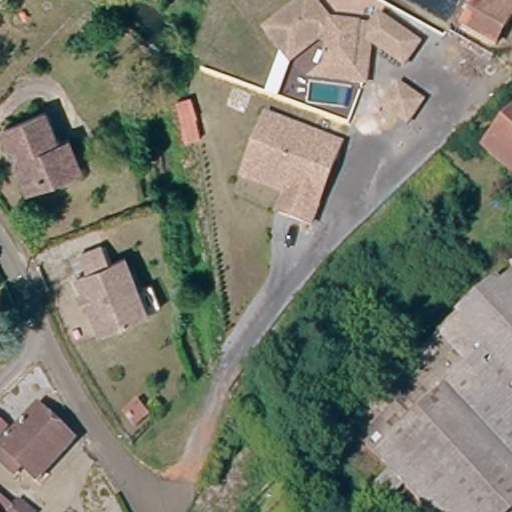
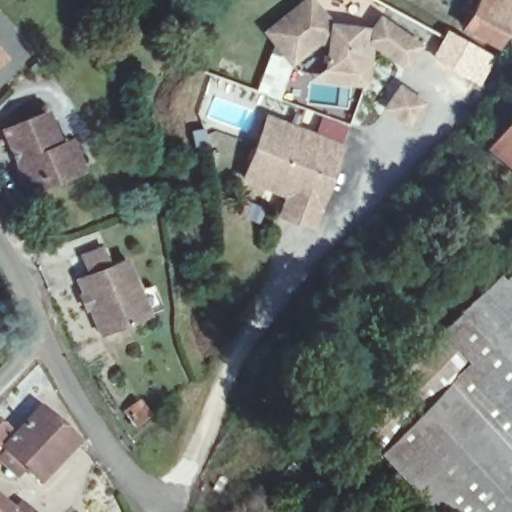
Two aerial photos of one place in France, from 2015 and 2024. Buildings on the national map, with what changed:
unchanged [(481,0),(512,0),(512,21),(499,44),(467,26),(481,0)]
unchanged [(315,60),(329,62),(331,46),(320,44),(293,65),(269,34),(313,1),(334,29),(374,34),(383,22),(422,49),(407,70),(373,46),(368,88),(353,86),(313,81),(315,60)]
new [(497,56),(481,85),(431,56),(447,28),(466,39),(497,56)]
new [(0,61),(0,49),(6,56),(0,61)]
unchanged [(403,90),(424,107),(410,127),(388,111),(403,90)]
unchanged [(30,186),(5,125),(48,108),(74,169),(30,186)]
unchanged [(343,145),(334,166),(312,225),(282,213),(289,193),(245,176),(262,133),(268,116),(298,128),(336,142),(343,145)]
unchanged [(487,150),(512,120),(512,172),(487,150)]
new [(202,123),(207,138),(195,142),(190,127),(202,123)]
unchanged [(84,312),(79,298),(83,297),(77,280),(89,277),(83,258),(106,250),(113,269),(130,263),(141,296),(155,291),(164,315),(96,337),(90,321),(88,311),(84,312)]
unchanged [(430,512),(346,421),(434,329),(494,273),(499,279),(512,268),(512,512),(430,512)]
unchanged [(141,403),(151,416),(140,424),(130,412),(141,403)]
unchanged [(73,437),(36,475),(3,442),(35,408),(54,426),(58,422),(73,437)]
unchanged [(0,431),(0,421),(5,425),(0,431)]
unchanged [(0,493),(13,503),(19,496),(35,510),(34,512),(2,512),(0,511),(0,493)]

